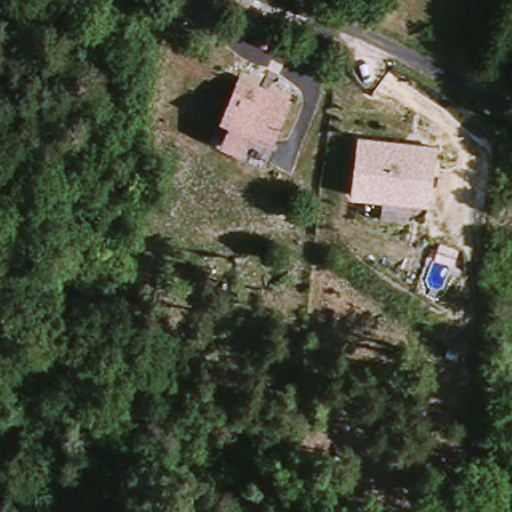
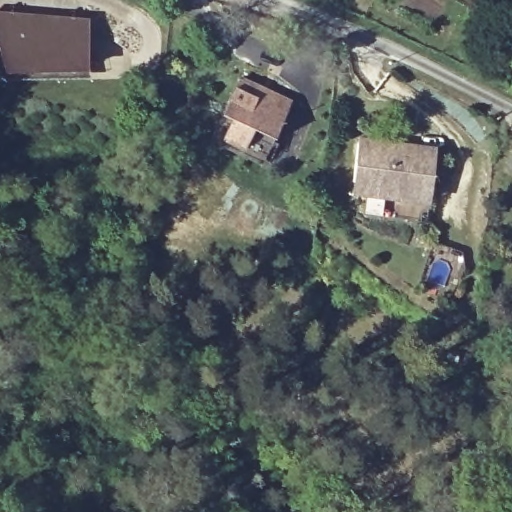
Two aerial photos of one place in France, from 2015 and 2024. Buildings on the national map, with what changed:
new [(0,13),(89,19),(90,80),(1,80),(0,77),(0,13)]
unchanged [(227,115),(218,110),(237,72),(287,98),(268,135),(260,153),(218,133),(227,115)]
unchanged [(381,195),(350,191),(351,179),(357,135),(433,146),(428,189),(427,201),(414,200),(381,195)]

